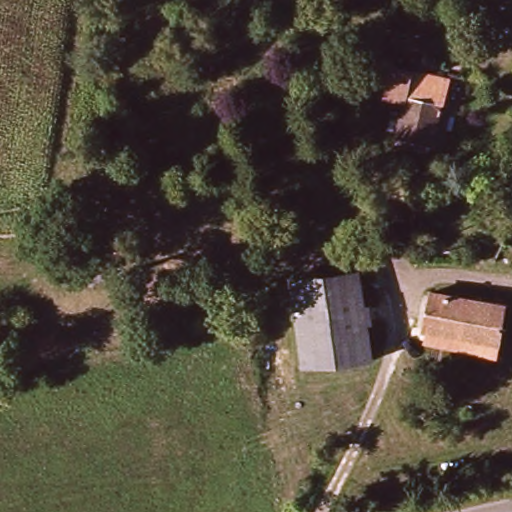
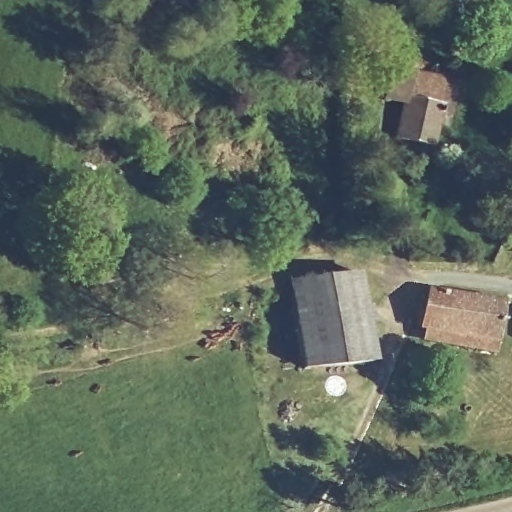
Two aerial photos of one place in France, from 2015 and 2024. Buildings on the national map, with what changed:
unchanged [(396,140),(402,106),(385,102),(392,73),(443,85),(430,148),(396,140)]
unchanged [(305,290),(303,278),(362,270),(368,272),(370,292),(377,362),(315,368),(314,365),(305,290)]
unchanged [(314,365),(290,368),(281,291),(305,290),(314,365)]
unchanged [(502,308),(494,343),(424,331),(430,296),(502,308)]

